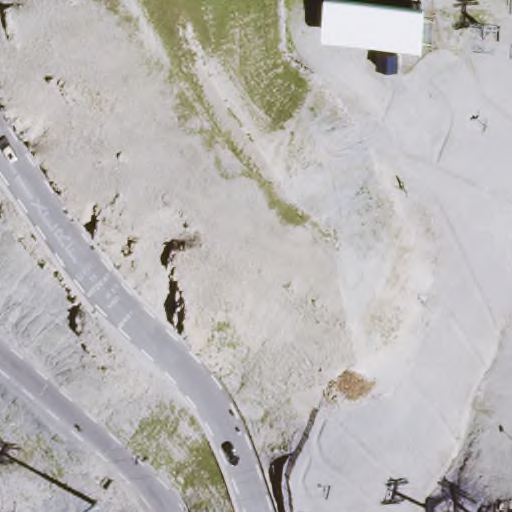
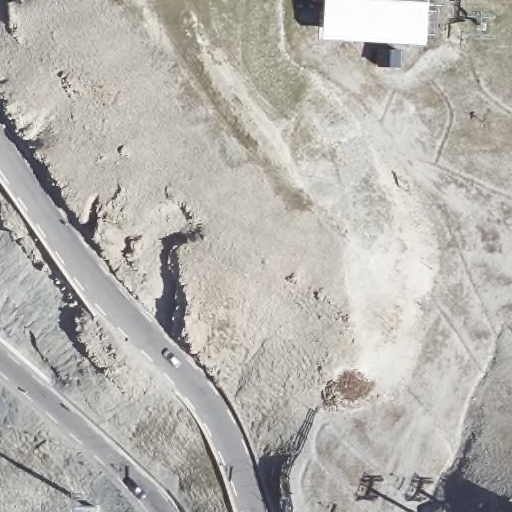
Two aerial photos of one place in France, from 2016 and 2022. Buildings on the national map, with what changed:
unchanged [(442,0),(440,46),(388,44),(320,41),(322,0),(442,0)]

